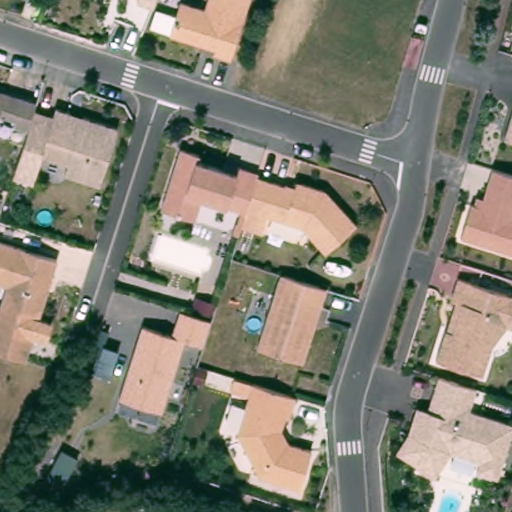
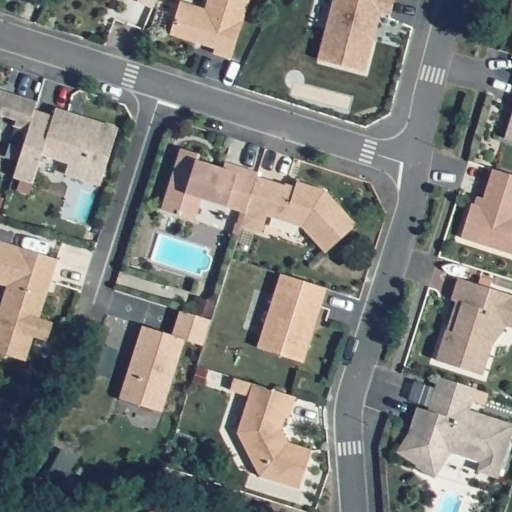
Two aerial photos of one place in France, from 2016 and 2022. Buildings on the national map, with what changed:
unchanged [(154,6),(140,0),(157,0),(154,6)]
unchanged [(239,47),(173,35),(182,0),(208,5),(209,0),(252,0),(239,47)]
new [(332,0),(393,0),(389,15),(379,12),(372,40),(364,71),(326,61),(317,59),(326,21),(332,0)]
unchanged [(28,126),(14,123),(16,116),(4,112),(0,128),(0,86),(36,98),(33,108),(28,126)]
unchanged [(53,113),(55,106),(121,122),(103,184),(66,172),(70,161),(44,154),(35,182),(14,175),(28,126),(33,108),(53,113)]
unchanged [(202,151),(203,157),(222,163),(226,159),(299,179),(328,187),(361,221),(328,251),(303,224),(282,216),(265,215),(245,208),(203,197),(198,218),(163,210),(181,148),(202,151)]
unchanged [(512,249),(464,234),(472,203),(485,196),(493,168),(512,174),(512,249)]
unchanged [(57,255),(41,314),(54,318),(49,338),(34,334),(28,359),(0,350),(0,312),(9,282),(0,280),(0,239),(57,255)]
unchanged [(330,287),(305,362),(259,344),(283,271),(330,287)]
unchanged [(512,324),(507,322),(485,372),(438,355),(446,328),(454,330),(461,299),(452,297),(458,276),(512,290),(512,324)]
unchanged [(141,325),(172,334),(179,311),(190,313),(196,297),(214,303),(210,320),(203,345),(184,340),(161,412),(118,399),(141,325)]
unchanged [(470,406),(512,421),(512,423),(498,469),(452,456),(440,478),(398,453),(415,406),(428,409),(437,373),(476,386),(470,406)]
unchanged [(326,400),(301,484),(258,472),(238,428),(253,381),(326,400)]
new [(171,511),(171,512),(150,512),(151,506),(171,511)]

